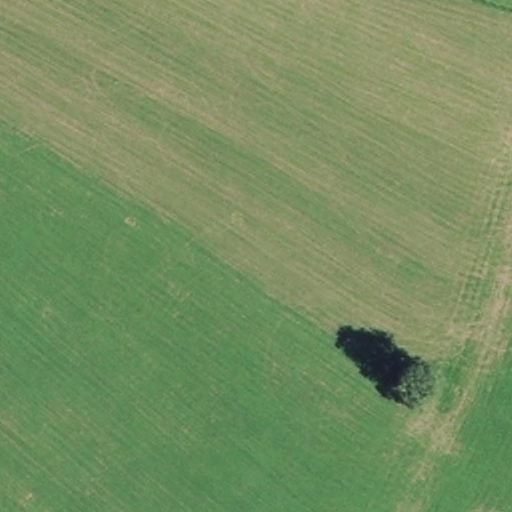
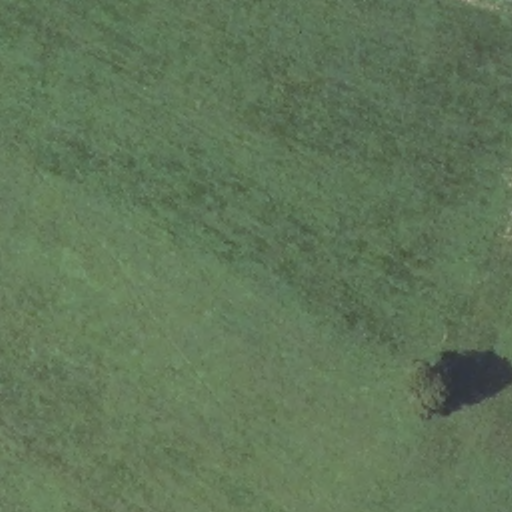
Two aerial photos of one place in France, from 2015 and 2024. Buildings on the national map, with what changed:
[]

